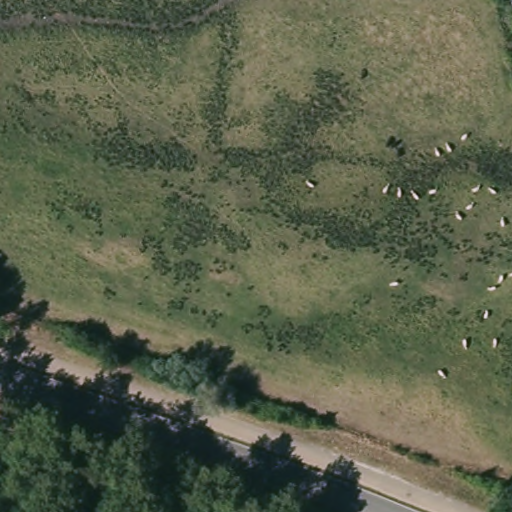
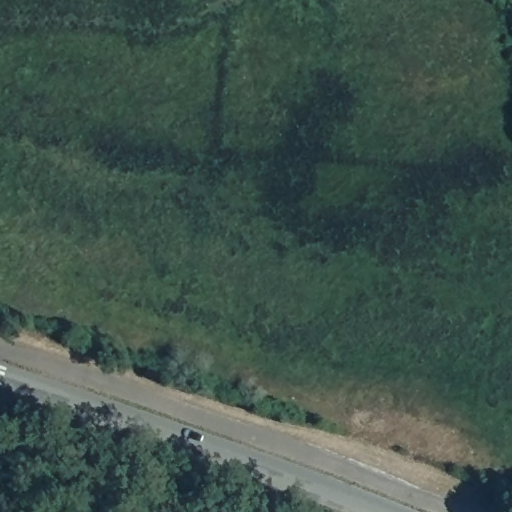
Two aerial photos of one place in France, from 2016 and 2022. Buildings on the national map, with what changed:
[]

